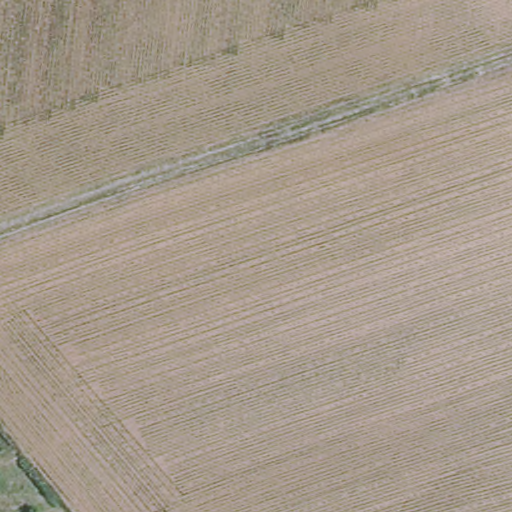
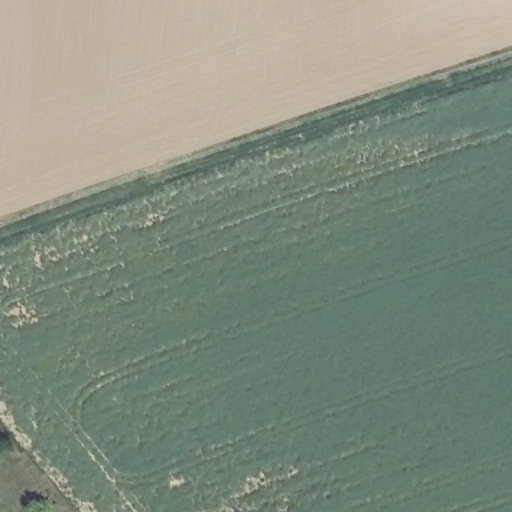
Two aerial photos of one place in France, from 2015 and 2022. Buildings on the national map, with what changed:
[]

